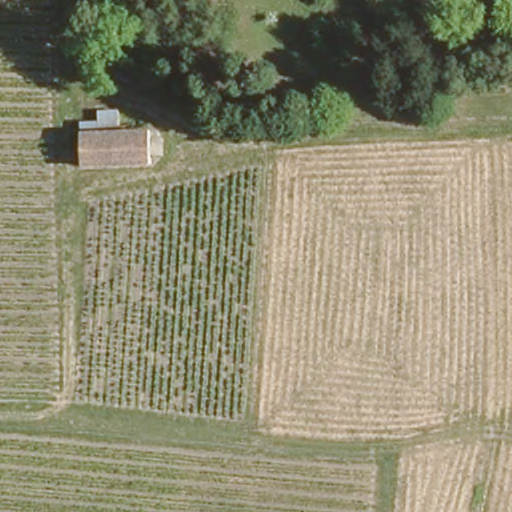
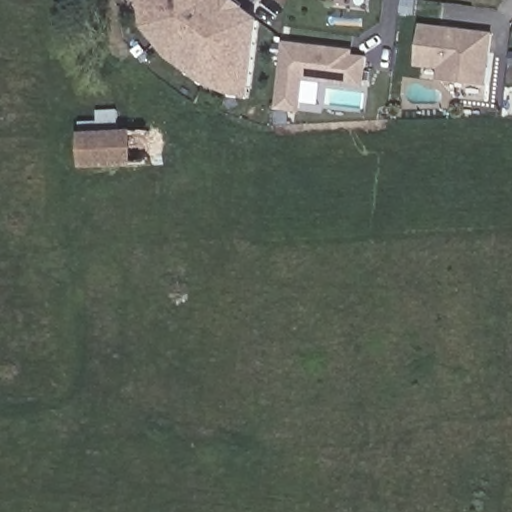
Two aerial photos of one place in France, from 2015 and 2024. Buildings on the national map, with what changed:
new [(238,10),(241,7),(258,20),(250,89),(232,86),(232,92),(205,80),(208,76),(194,66),(191,70),(171,55),(147,26),(143,1),(148,0),(224,0),(238,10)]
new [(491,33),(485,86),(440,80),(441,67),(416,64),(421,25),(491,33)]
new [(354,49),(354,55),(369,56),(365,87),(305,80),(301,112),(276,109),(283,41),(354,49)]
unchanged [(147,130),(148,164),(141,164),(76,167),(75,131),(147,130)]

